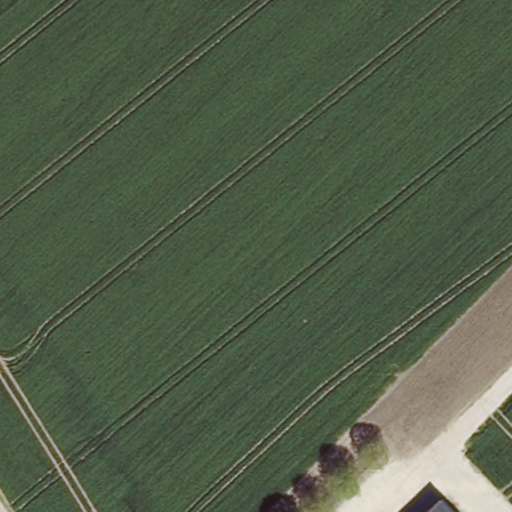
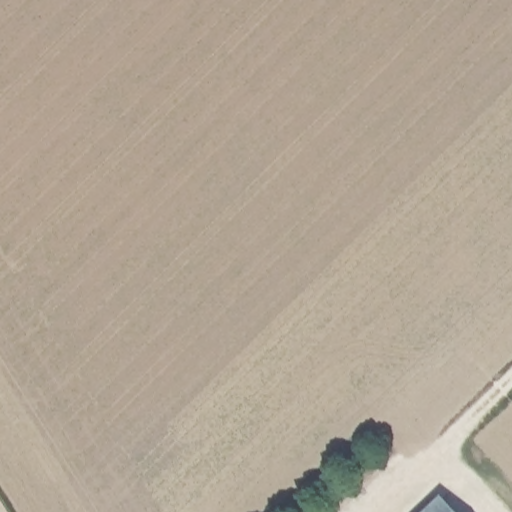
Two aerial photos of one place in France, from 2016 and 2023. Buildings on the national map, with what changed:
unchanged [(443,491),(463,512),(421,512),(443,491)]

